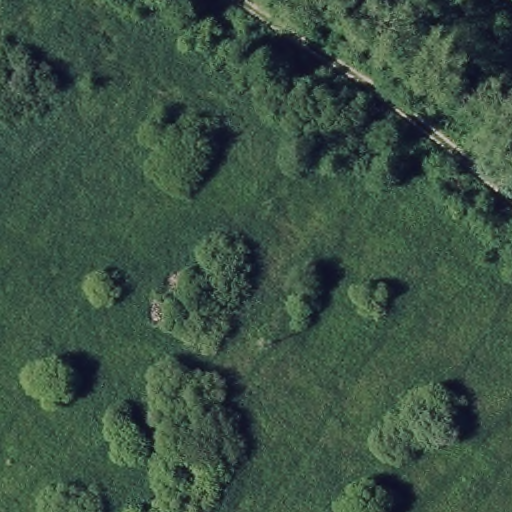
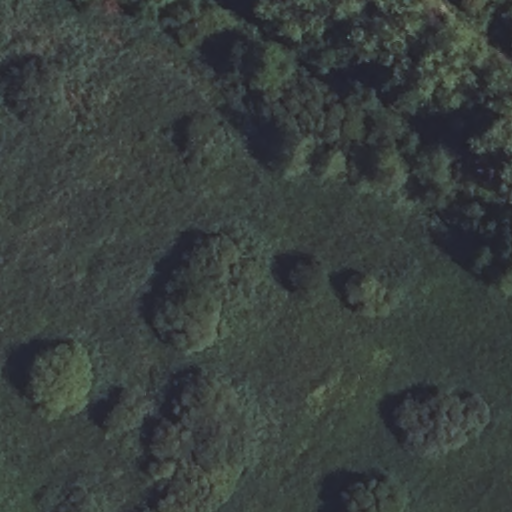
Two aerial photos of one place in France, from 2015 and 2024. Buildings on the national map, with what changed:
unchanged [(512,6),(504,0),(512,0),(512,6)]

